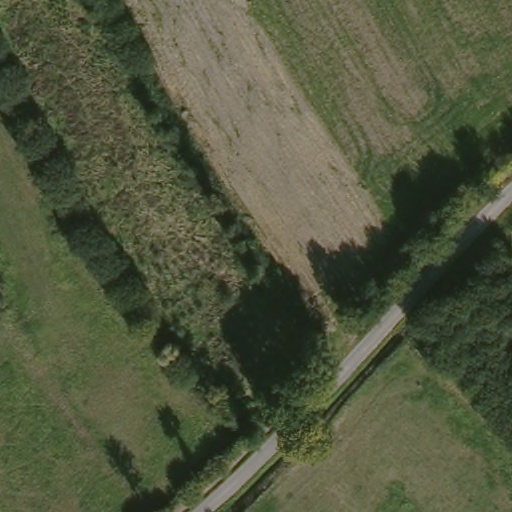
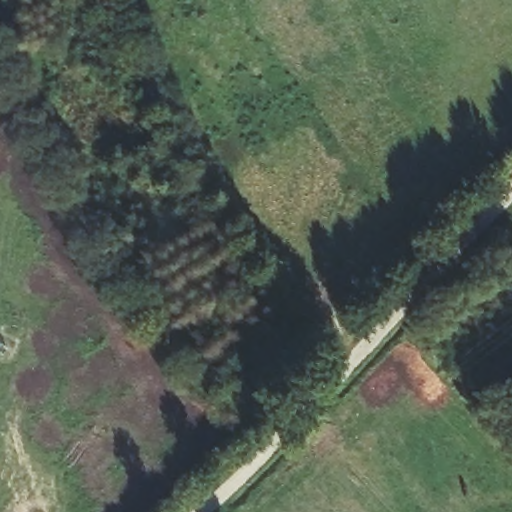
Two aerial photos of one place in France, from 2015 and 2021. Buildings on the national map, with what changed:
[]

